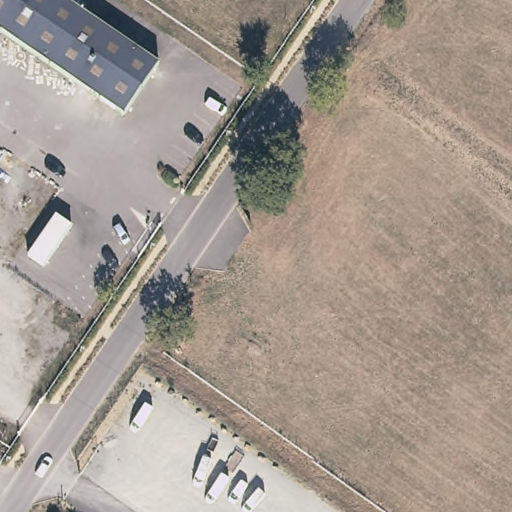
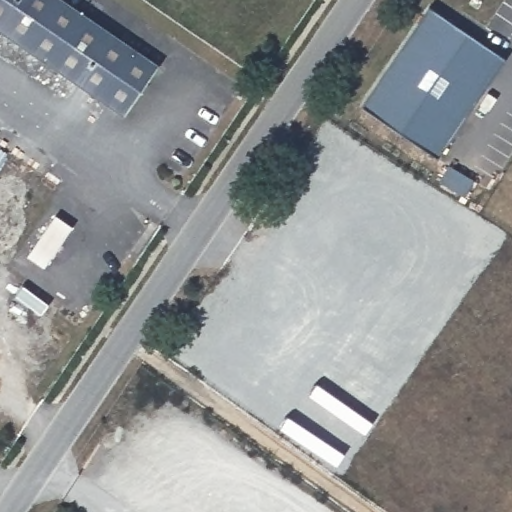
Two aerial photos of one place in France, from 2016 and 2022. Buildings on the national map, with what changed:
unchanged [(62,0),(157,64),(122,116),(0,33),(0,0),(62,0)]
new [(430,7),(504,59),(438,156),(362,106),(430,7)]

